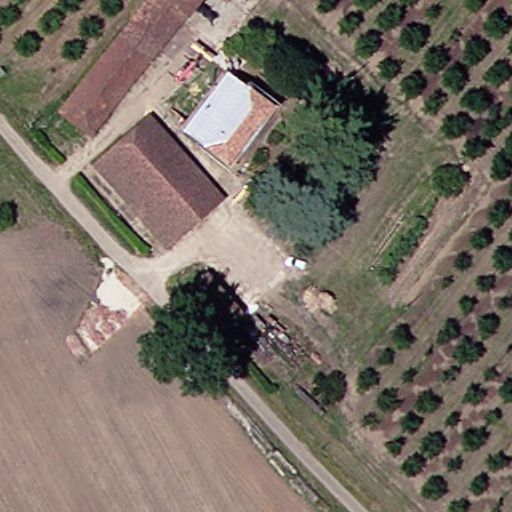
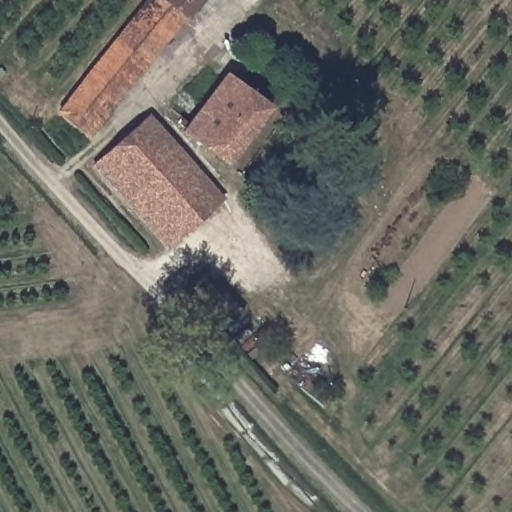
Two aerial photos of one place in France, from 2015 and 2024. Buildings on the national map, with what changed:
unchanged [(209,0),(190,23),(95,139),(61,113),(152,0),(164,0),(166,1),(167,0),(209,0)]
unchanged [(229,71),(280,105),(234,168),(185,130),(229,71)]
unchanged [(89,163),(148,113),(157,124),(168,116),(214,178),(151,233),(89,163)]
unchanged [(214,178),(227,195),(214,204),(220,212),(166,253),(151,233),(214,178)]
unchanged [(242,313),(224,330),(188,299),(205,279),(242,313)]

